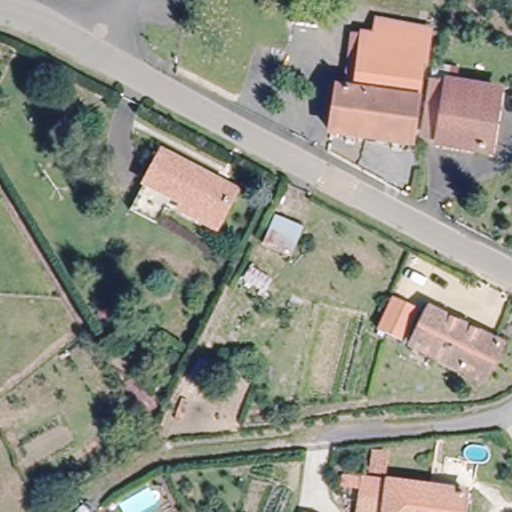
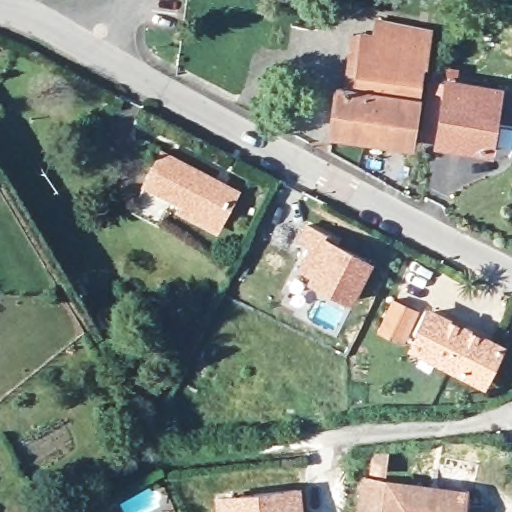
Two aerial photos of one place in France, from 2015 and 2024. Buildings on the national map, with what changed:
unchanged [(429,58),(427,57),(416,134),(336,123),(343,78),(350,79),(358,24),(368,25),(368,24),(379,26),(383,11),(434,21),(429,58)]
unchanged [(495,141),(442,132),(443,124),(428,122),(435,81),(437,69),(439,55),(463,60),(461,73),(503,80),(495,141)]
unchanged [(179,204),(182,199),(173,194),(158,221),(131,206),(163,147),(238,187),(229,203),(217,225),(179,204)]
new [(312,244),(300,237),(307,225),(331,238),(329,242),(369,263),(349,300),(311,280),(314,273),(300,266),(312,244)]
new [(393,299),(417,311),(402,342),(378,330),(393,299)]
unchanged [(483,382),(413,346),(430,311),(476,334),(501,346),(483,382)]
unchanged [(359,512),(363,480),(465,493),(464,498),(463,512),(359,512)]
new [(302,486),(304,512),(216,512),(214,496),(302,486)]
new [(174,512),(172,512),(173,511),(174,512)]

